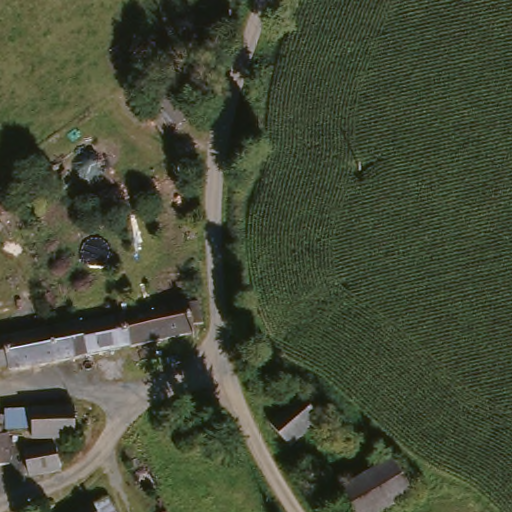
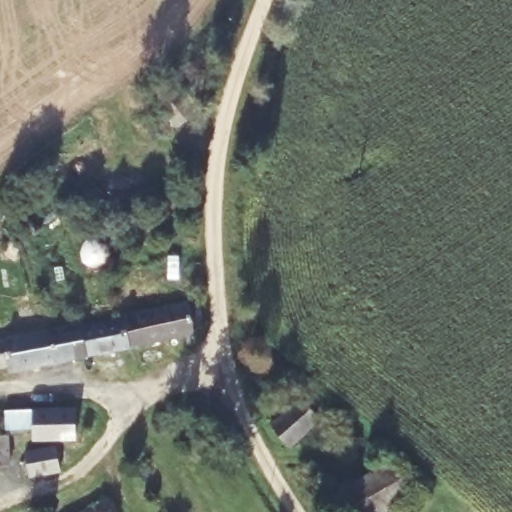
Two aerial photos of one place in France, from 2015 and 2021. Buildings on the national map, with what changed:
unchanged [(223,23),(223,19),(226,12),(238,15),(236,26),(223,23)]
unchanged [(150,104),(169,88),(196,119),(176,134),(150,104)]
unchanged [(61,174),(64,171),(94,144),(119,172),(86,201),(61,174)]
unchanged [(111,321),(176,308),(176,313),(189,310),(191,330),(180,332),(182,343),(119,352),(111,321)]
unchanged [(69,330),(111,321),(119,352),(76,360),(69,330)]
unchanged [(22,339),(69,330),(76,360),(0,377),(0,343),(6,342),(22,339)]
unchanged [(299,399),(318,419),(283,451),(268,425),(299,399)]
unchanged [(6,419),(71,414),(74,445),(61,446),(58,446),(34,447),(31,437),(8,439),(6,419)]
unchanged [(9,445),(11,470),(0,471),(0,443),(1,444),(9,445)]
unchanged [(24,460),(53,452),(60,477),(29,485),(24,460)]
unchanged [(129,456),(138,481),(123,485),(113,461),(129,456)]
unchanged [(390,469),(408,501),(388,512),(347,512),(339,497),(390,469)]
unchanged [(106,508),(109,512),(99,512),(106,508)]
unchanged [(91,510),(92,512),(86,512),(91,510)]

